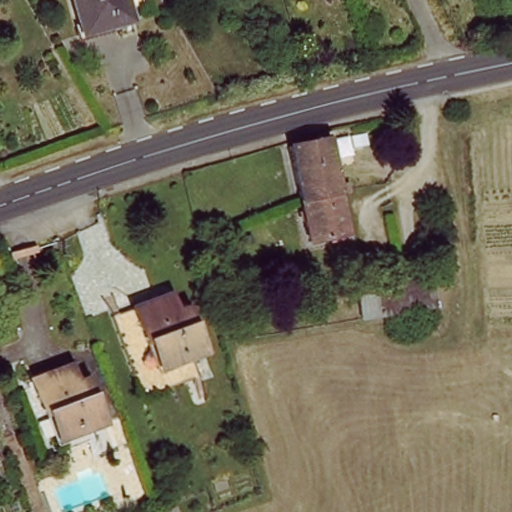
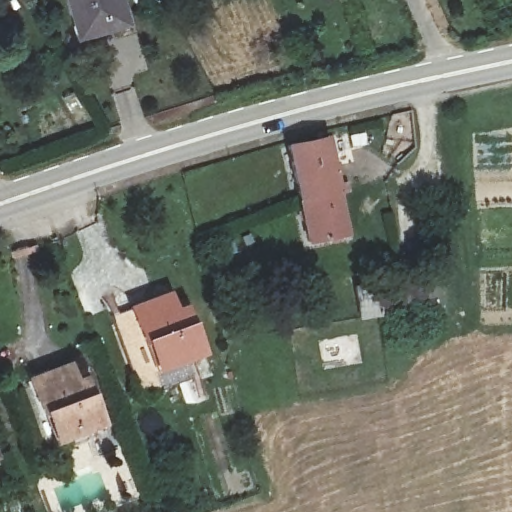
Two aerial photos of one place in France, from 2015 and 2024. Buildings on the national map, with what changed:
unchanged [(79,36),(70,0),(124,0),(130,21),(79,36)]
unchanged [(288,149),(324,142),(344,237),(306,245),(288,149)]
unchanged [(433,271),(440,303),(383,312),(378,281),(433,271)]
unchanged [(177,301),(201,360),(160,377),(136,319),(177,301)]
unchanged [(70,366),(96,424),(54,441),(29,384),(70,366)]

